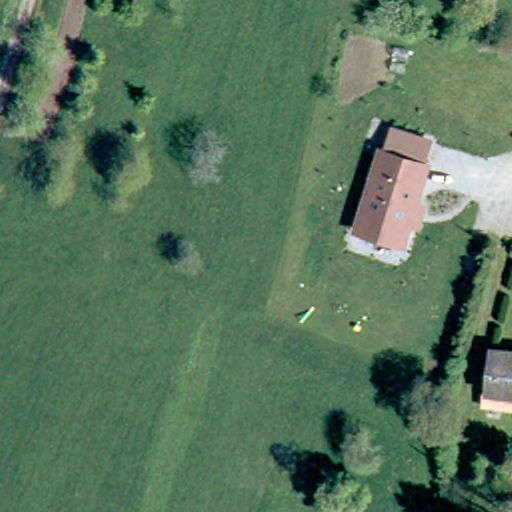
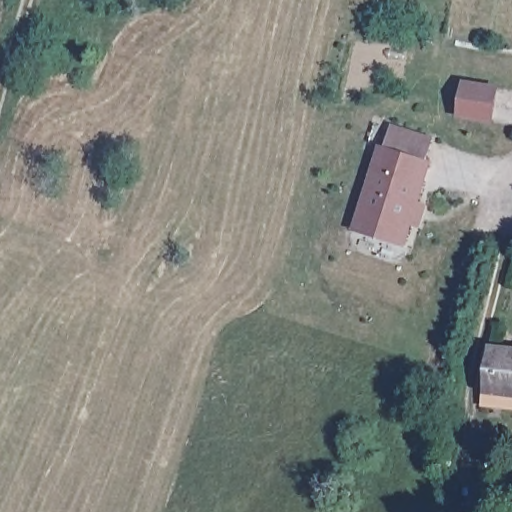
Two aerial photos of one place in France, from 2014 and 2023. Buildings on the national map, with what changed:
new [(495,123),(458,118),(463,80),(501,85),(495,123)]
unchanged [(381,149),(386,150),(391,129),(429,138),(423,159),(429,161),(407,243),(359,230),(381,149)]
unchanged [(498,339),(512,341),(512,401),(493,399),(498,339)]

